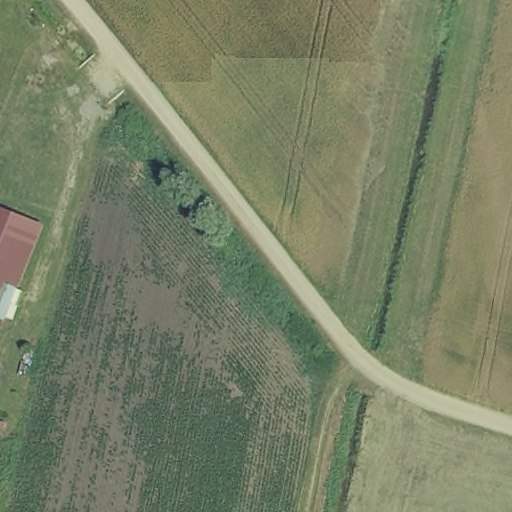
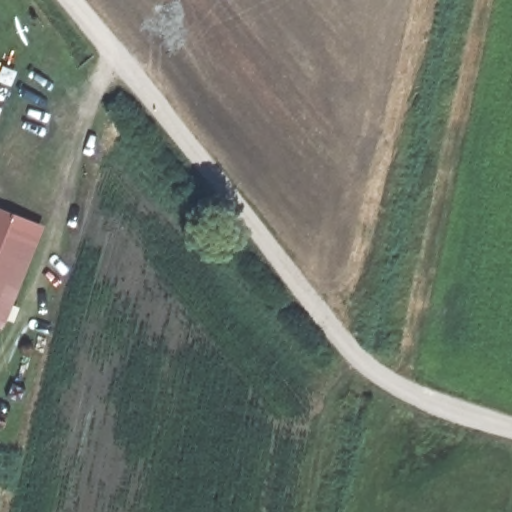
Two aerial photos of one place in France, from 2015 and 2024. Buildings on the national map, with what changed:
unchanged [(14,295),(2,290),(0,296),(0,209),(40,224),(14,295)]

